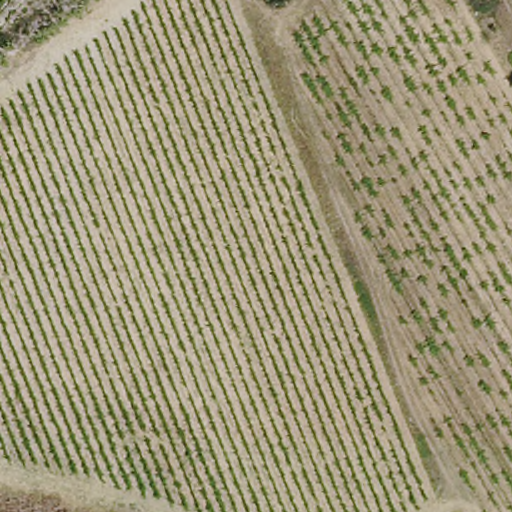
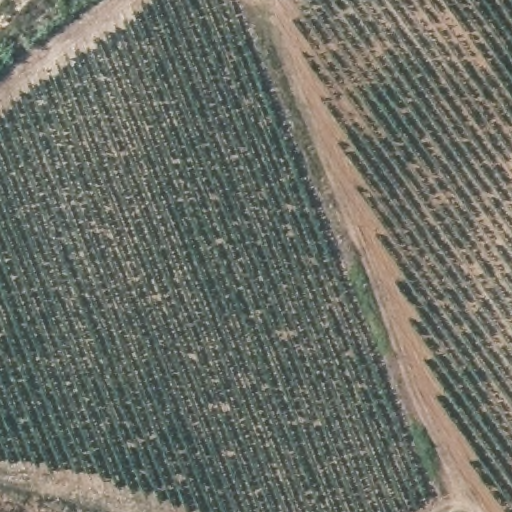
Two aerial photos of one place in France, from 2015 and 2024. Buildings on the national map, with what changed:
[]

